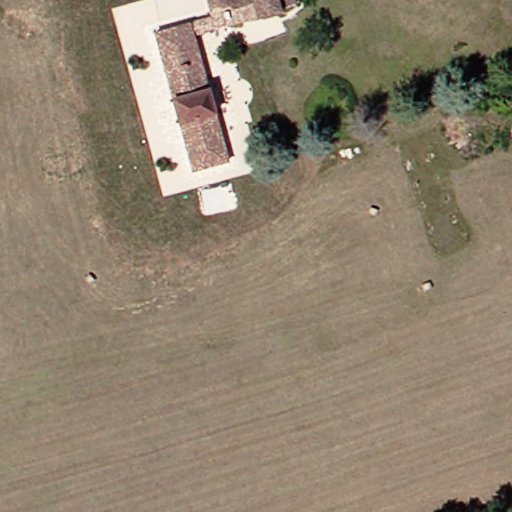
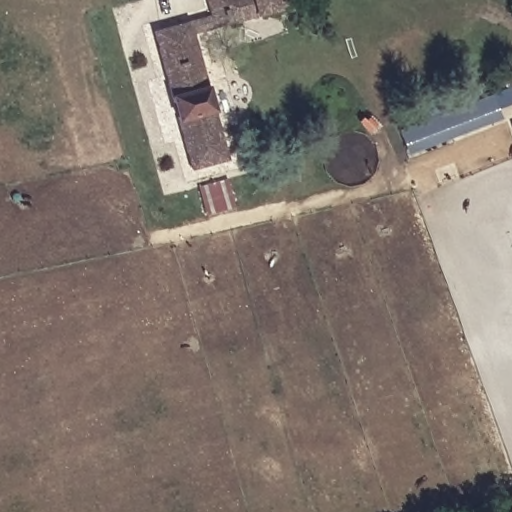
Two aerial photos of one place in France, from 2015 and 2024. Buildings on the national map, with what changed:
unchanged [(202,0),(288,0),(290,5),(274,8),(275,12),(220,27),(212,30),(202,0)]
unchanged [(185,24),(232,158),(195,170),(150,35),(185,24)]
new [(512,105),(499,110),(503,120),(408,156),(398,130),(511,87),(512,89),(512,105)]
new [(512,126),(512,129),(511,126),(512,126)]

